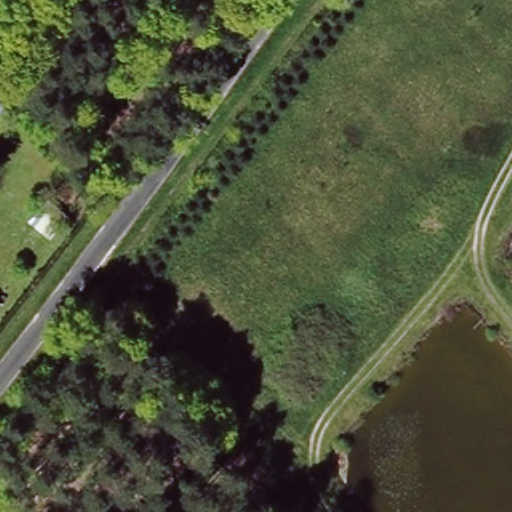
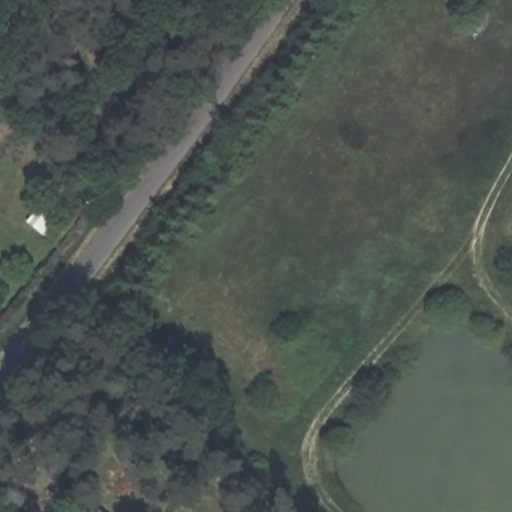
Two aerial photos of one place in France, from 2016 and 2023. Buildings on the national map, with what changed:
unchanged [(0,118),(0,103),(8,110),(0,118)]

